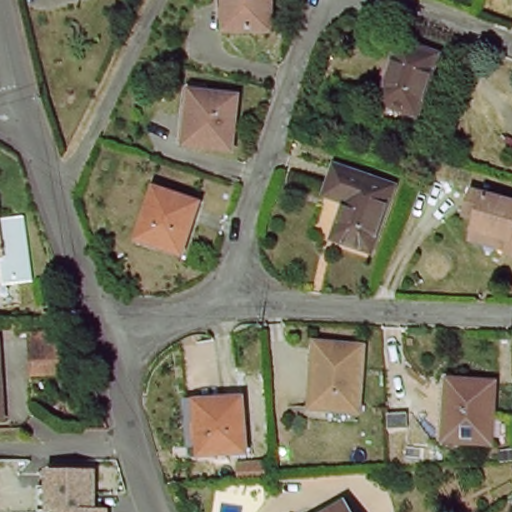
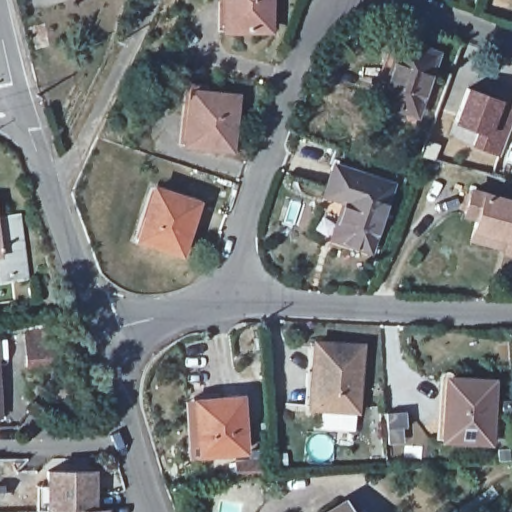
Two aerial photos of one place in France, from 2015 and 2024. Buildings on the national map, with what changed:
unchanged [(270,30),(227,30),(227,0),(270,0),(270,30)]
unchanged [(416,115),(379,102),(400,42),(437,54),(416,115)]
new [(480,95),(485,86),(512,97),(512,122),(499,161),(465,148),(470,134),(443,123),(457,86),(480,95)]
unchanged [(231,150),(187,145),(191,113),(187,113),(190,91),(237,96),(231,150)]
unchanged [(392,185),(370,251),(332,238),(345,201),(325,195),(327,187),(335,165),(392,185)]
unchanged [(180,254),(137,240),(143,219),(147,220),(157,189),(198,203),(180,254)]
unchanged [(478,230),(482,218),(470,214),(477,191),(512,201),(512,247),(477,237),(478,230)]
unchanged [(0,275),(0,224),(7,274),(0,275)]
unchanged [(510,252),(512,247),(512,252),(510,252)]
unchanged [(26,332),(57,330),(60,372),(29,374),(26,332)]
unchanged [(312,408),(315,366),(312,366),(315,343),(362,347),(357,411),(312,408)]
unchanged [(444,440),(448,380),(493,383),(490,443),(444,440)]
unchanged [(245,452),(198,455),(194,402),(240,398),(245,452)]
new [(387,446),(387,431),(386,415),(406,414),(407,429),(402,430),(403,444),(387,446)]
unchanged [(87,506),(107,509),(107,512),(51,512),(51,509),(37,509),(37,474),(85,475),(87,506)]
unchanged [(355,512),(323,512),(347,498),(355,512)]

